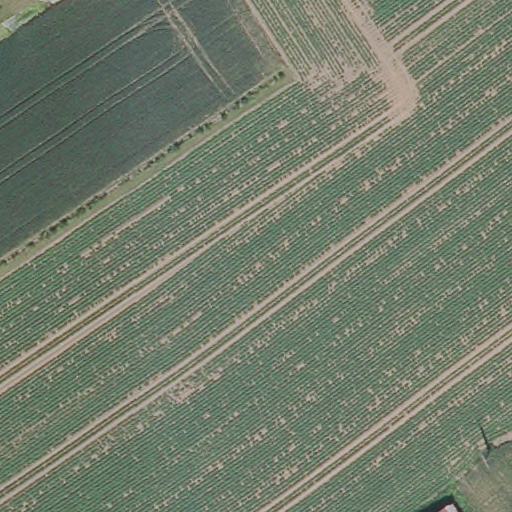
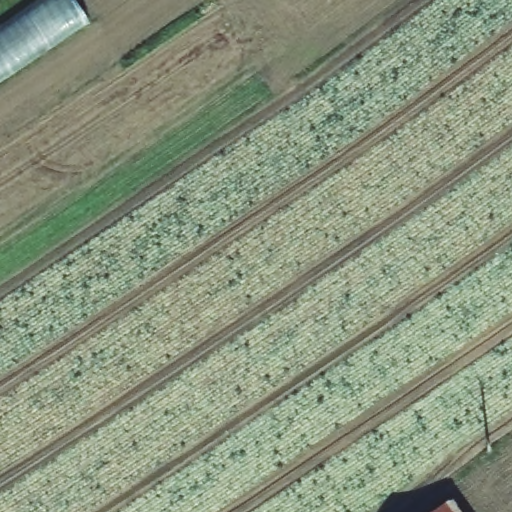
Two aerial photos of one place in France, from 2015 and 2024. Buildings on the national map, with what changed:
new [(90,22),(0,82),(0,24),(37,0),(75,0),(90,22)]
unchanged [(438,512),(455,500),(462,512),(438,512)]

